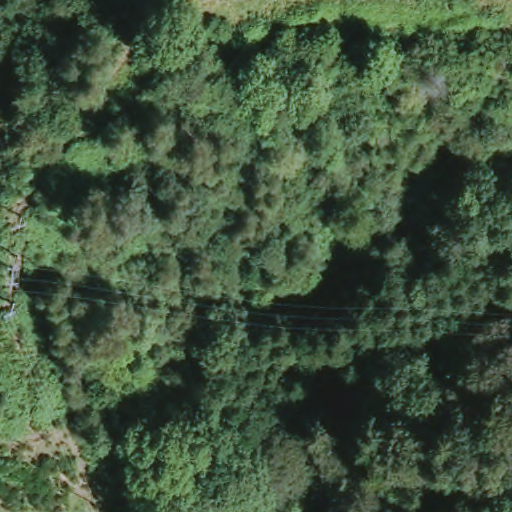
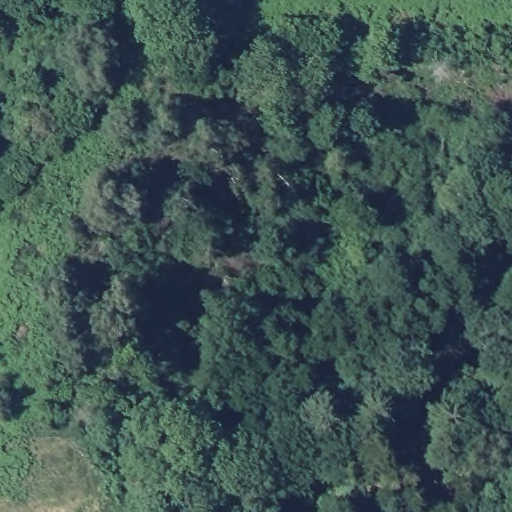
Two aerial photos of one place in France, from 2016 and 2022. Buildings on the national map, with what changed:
[]

